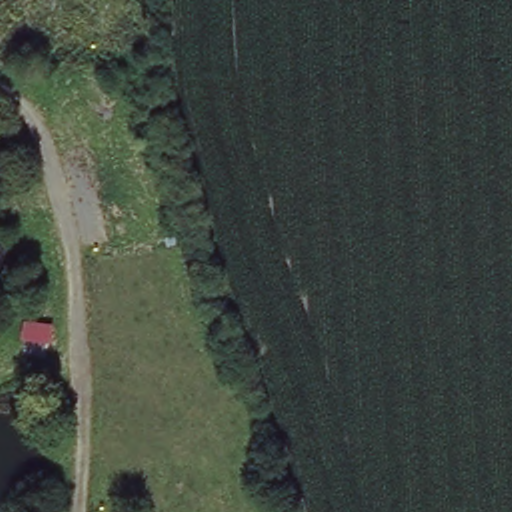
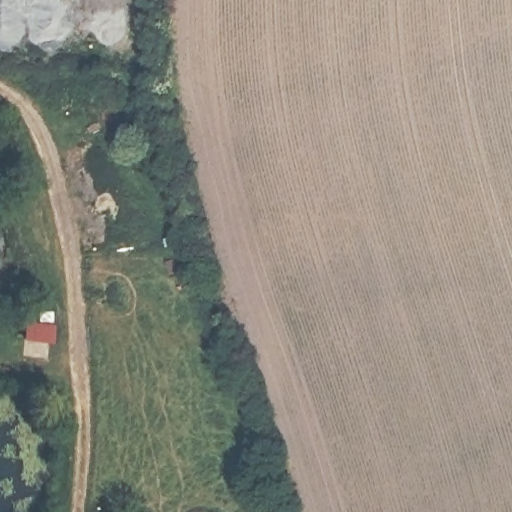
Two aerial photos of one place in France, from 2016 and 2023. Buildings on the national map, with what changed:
unchanged [(20,319),(55,326),(52,346),(16,341),(20,319)]

